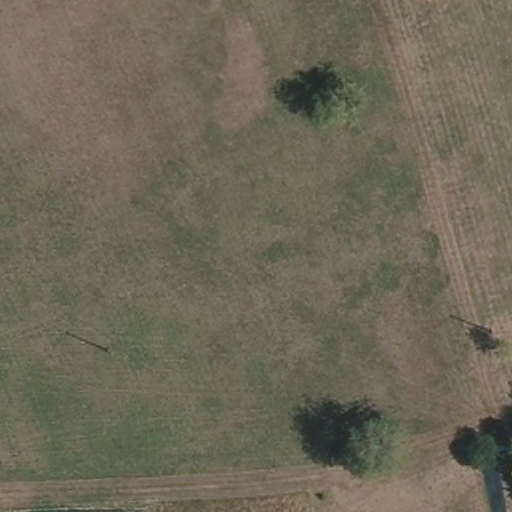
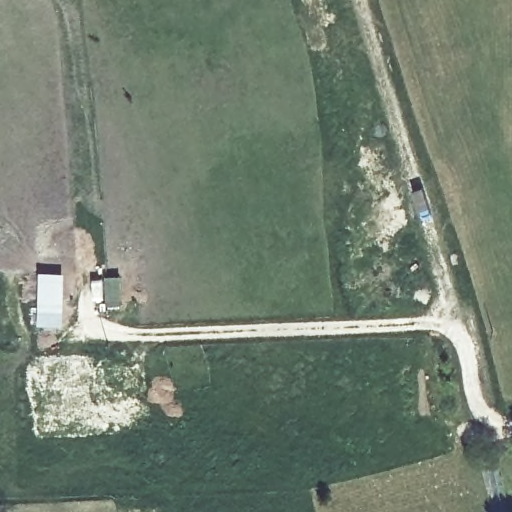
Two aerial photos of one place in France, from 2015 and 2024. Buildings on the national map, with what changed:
new [(66,273),(64,327),(39,327),(40,273),(66,273)]

